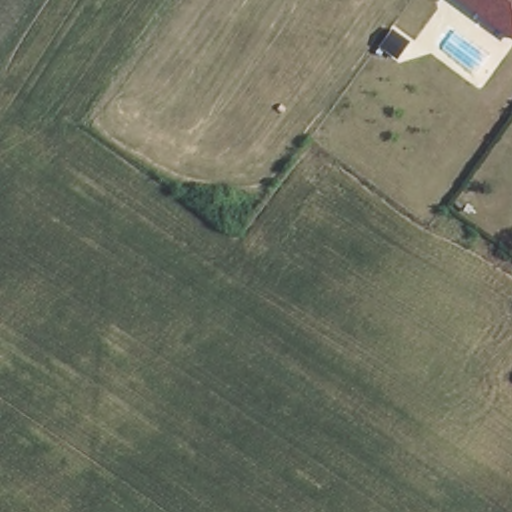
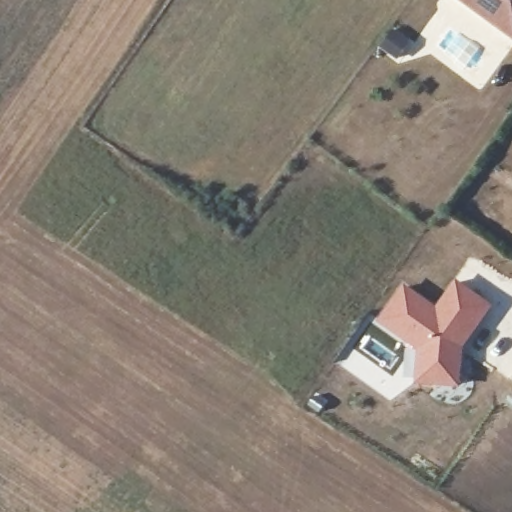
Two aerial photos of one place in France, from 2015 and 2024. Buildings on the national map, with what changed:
unchanged [(456,0),(512,0),(512,42),(456,0)]
new [(401,282),(435,305),(455,278),(492,305),(463,348),(459,387),(414,385),(414,350),(373,320),(401,282)]

